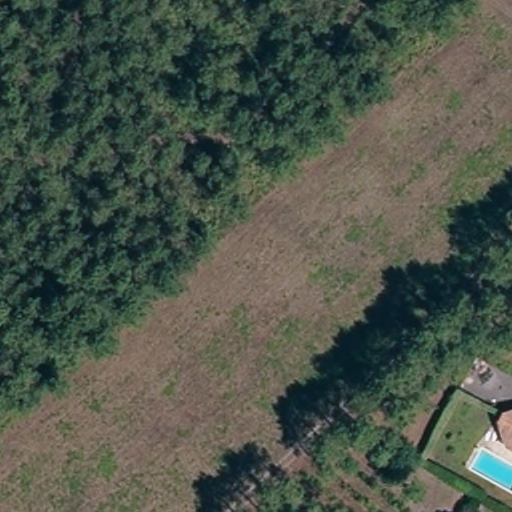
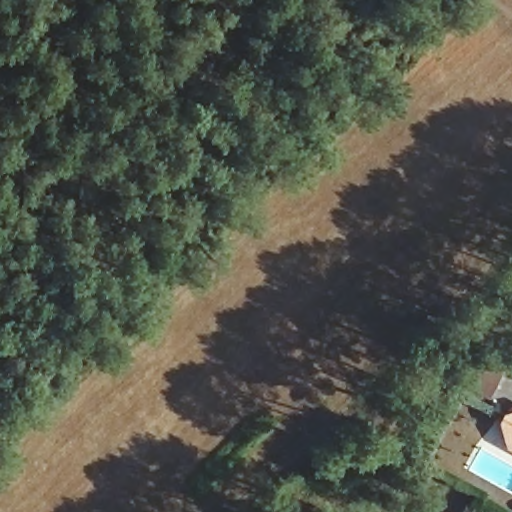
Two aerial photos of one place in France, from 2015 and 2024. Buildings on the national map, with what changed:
unchanged [(495,428),(500,417),(512,413),(512,444),(495,428)]

